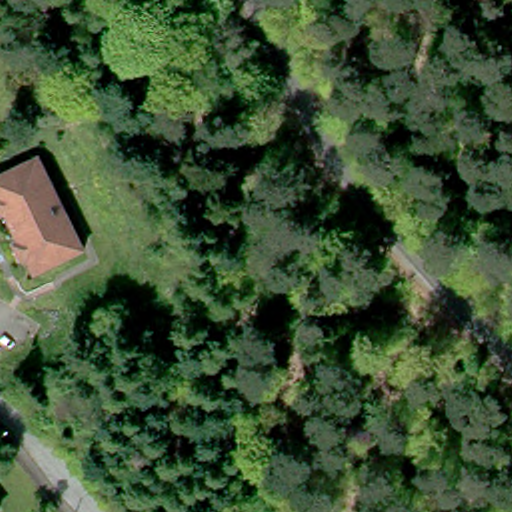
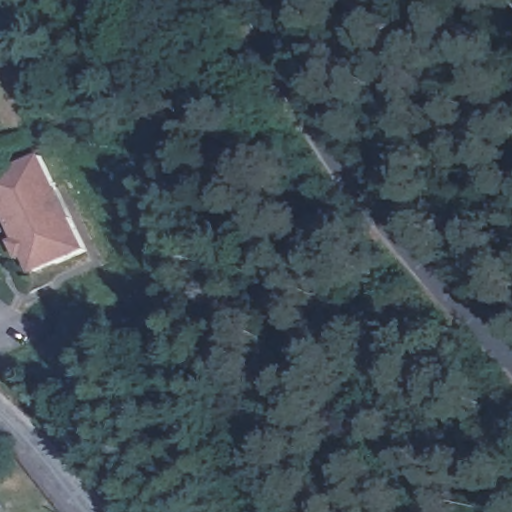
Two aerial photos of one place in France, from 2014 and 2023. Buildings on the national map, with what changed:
unchanged [(0,214),(0,213),(0,175),(10,170),(9,168),(38,154),(54,186),(49,188),(64,218),(68,216),(84,248),(56,262),(55,260),(36,270),(28,255),(23,257),(14,241),(20,238),(6,211),(0,214)]

